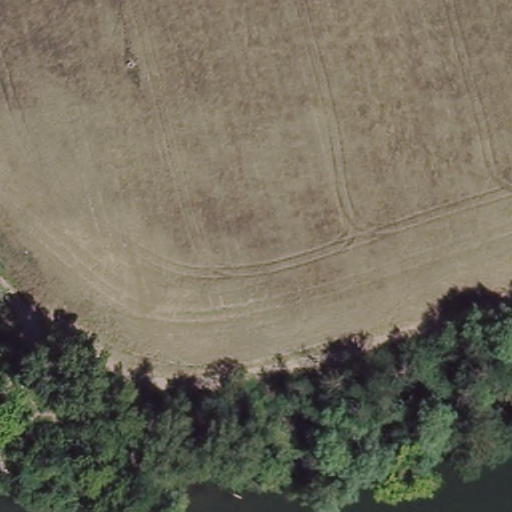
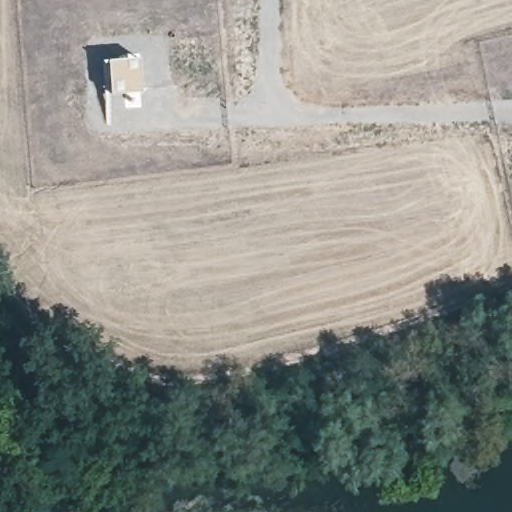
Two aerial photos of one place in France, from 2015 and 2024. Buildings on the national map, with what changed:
new [(140,58),(142,91),(110,94),(109,88),(102,88),(102,60),(140,58)]

